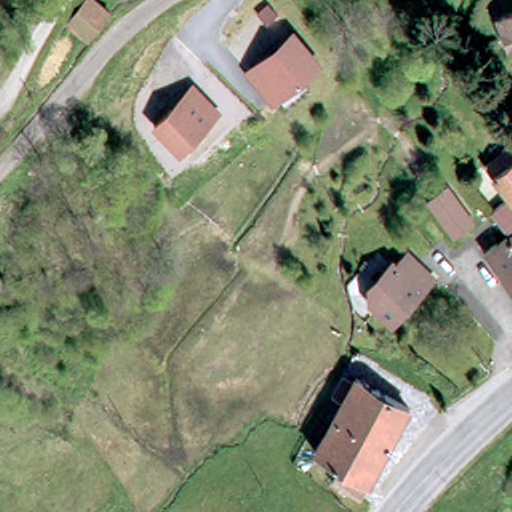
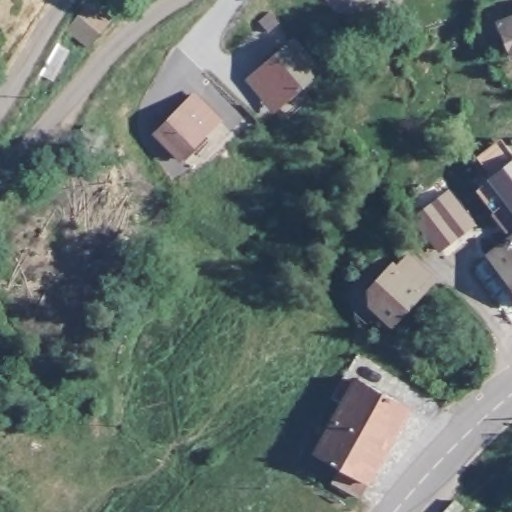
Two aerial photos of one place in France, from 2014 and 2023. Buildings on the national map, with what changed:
unchanged [(89,4),(110,21),(86,50),(66,32),(89,4)]
unchanged [(512,22),(512,47),(502,26),(512,22)]
unchanged [(275,101),(256,80),(294,46),(319,74),(291,99),(281,108),(275,101)]
unchanged [(191,104),(216,127),(179,166),(154,143),(191,104)]
unchanged [(498,190),(492,181),(512,167),(512,208),(498,190)]
unchanged [(498,227),(512,217),(512,246),(498,227)]
unchanged [(491,270),(512,254),(512,298),(491,270)]
unchanged [(395,317),(379,300),(374,296),(374,290),(389,275),(398,265),(402,269),(414,256),(414,257),(434,277),(395,317)]
unchanged [(419,413),(368,503),(344,490),(352,475),(324,459),(351,411),(339,405),(351,385),(362,391),(366,384),(419,413)]
unchanged [(446,512),(454,503),(461,510),(460,512),(446,512)]

